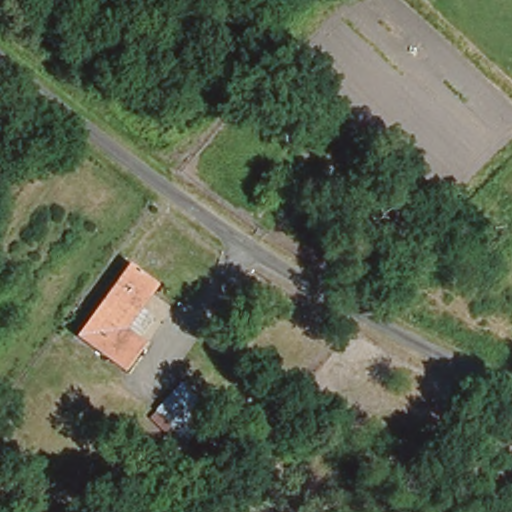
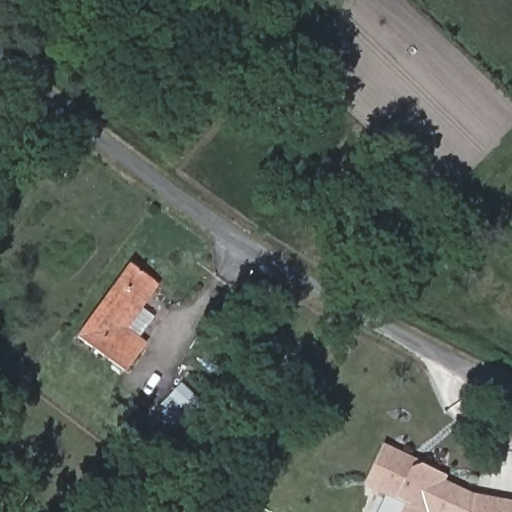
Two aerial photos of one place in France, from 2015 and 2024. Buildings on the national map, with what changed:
unchanged [(78,337),(131,264),(156,281),(160,283),(129,330),(146,344),(143,348),(127,371),(78,337)]
unchanged [(201,401),(193,412),(169,392),(177,381),(201,401)]
unchanged [(163,401),(166,397),(191,416),(180,429),(156,409),(163,401)]
new [(447,475),(444,481),(474,496),(467,512),(405,512),(409,504),(366,482),(384,445),(447,475)]
new [(512,503),(512,512),(467,512),(474,496),(512,503)]

